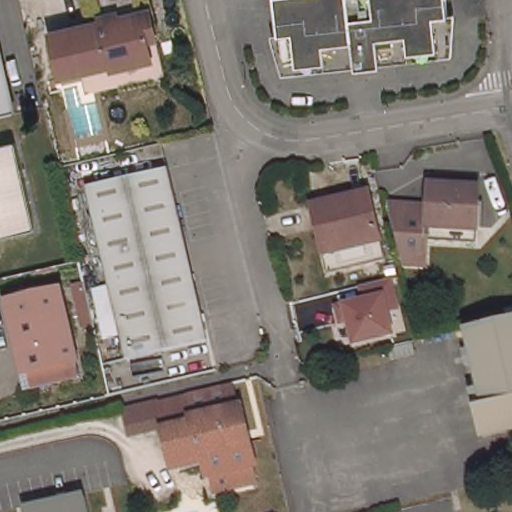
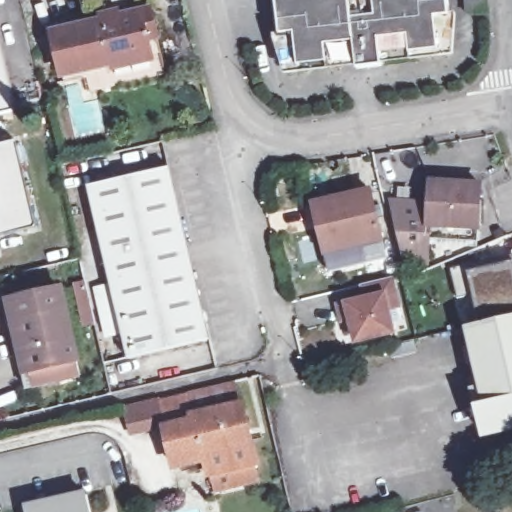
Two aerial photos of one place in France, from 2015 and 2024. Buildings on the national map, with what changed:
unchanged [(282,35),(278,0),(451,0),(452,17),(455,48),(442,50),(383,56),(385,66),(360,69),(358,60),(299,67),(285,68),(282,35)]
unchanged [(486,11),(464,12),(463,0),(485,0),(486,11)]
unchanged [(55,68),(45,24),(65,20),(142,2),(158,68),(78,86),(75,71),(56,75),(55,68)]
unchanged [(0,115),(0,47),(15,111),(0,115)]
unchanged [(0,235),(0,145),(17,140),(37,227),(0,235)]
unchanged [(208,339),(128,358),(90,188),(170,170),(208,339)]
unchanged [(480,186),(473,243),(428,238),(426,262),(406,261),(394,201),(430,204),(432,181),(480,186)]
unchanged [(310,198),(367,184),(379,232),(384,252),(326,266),(321,246),(310,198)]
new [(461,266),(462,271),(512,260),(512,305),(476,311),(471,295),(456,298),(449,269),(461,266)]
unchanged [(393,277),(400,305),(390,308),(395,331),(358,341),(352,318),(345,320),(341,305),(368,298),(365,284),(393,277)]
unchanged [(76,370),(28,380),(8,294),(56,283),(76,370)]
unchanged [(481,382),(470,327),(512,318),(512,431),(486,436),(476,393),(473,383),(481,382)]
unchanged [(257,482),(213,491),(205,459),(174,467),(165,427),(128,434),(122,407),(158,399),(186,392),(230,382),(257,482)]
unchanged [(84,512),(29,512),(28,509),(81,498),(84,512)]

